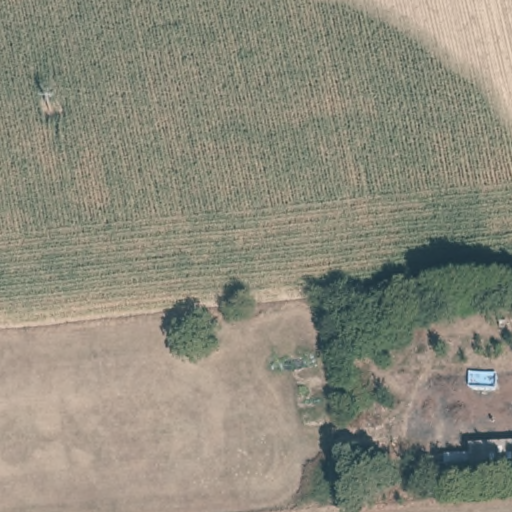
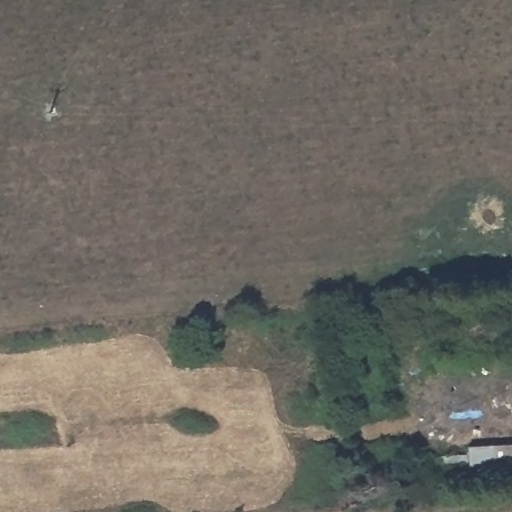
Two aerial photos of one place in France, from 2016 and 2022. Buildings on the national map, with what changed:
unchanged [(438,488),(441,456),(468,454),(469,443),(512,440),(512,485),(438,488)]

